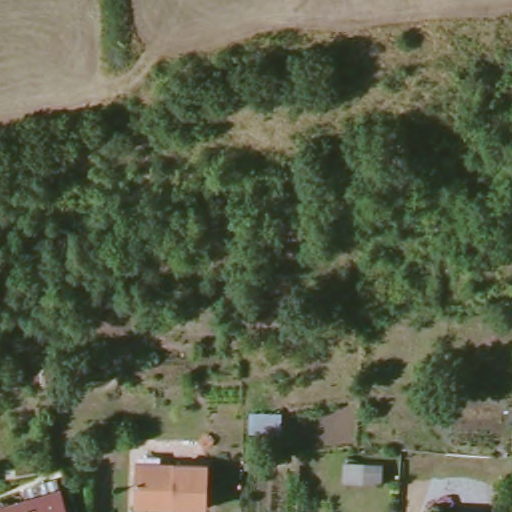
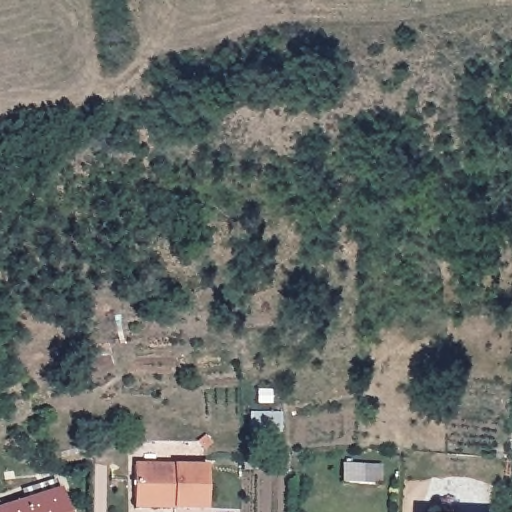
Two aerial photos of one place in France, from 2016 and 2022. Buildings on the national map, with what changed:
unchanged [(250,431),(249,416),(280,415),(280,432),(250,431)]
unchanged [(210,465),(209,508),(175,506),(175,501),(136,500),(137,463),(210,465)]
unchanged [(380,485),(345,482),(347,464),(382,465),(380,485)]
unchanged [(0,509),(27,501),(22,490),(55,481),(59,491),(65,512),(0,512),(0,509)]

